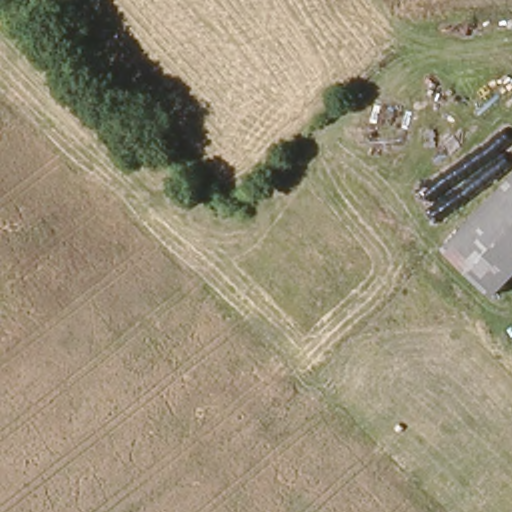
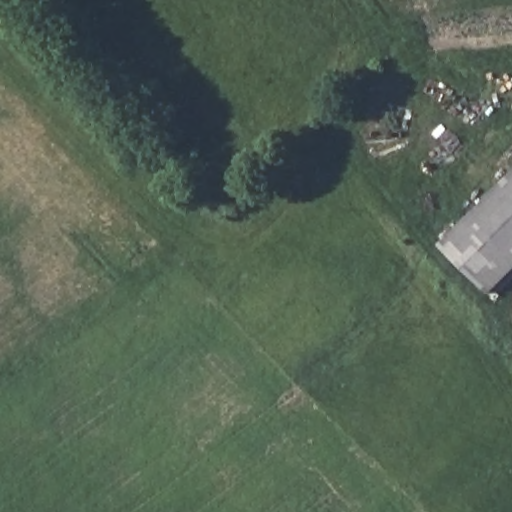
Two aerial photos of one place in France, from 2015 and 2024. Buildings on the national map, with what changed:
unchanged [(512,186),(512,288),(495,305),(448,253),(512,186)]

